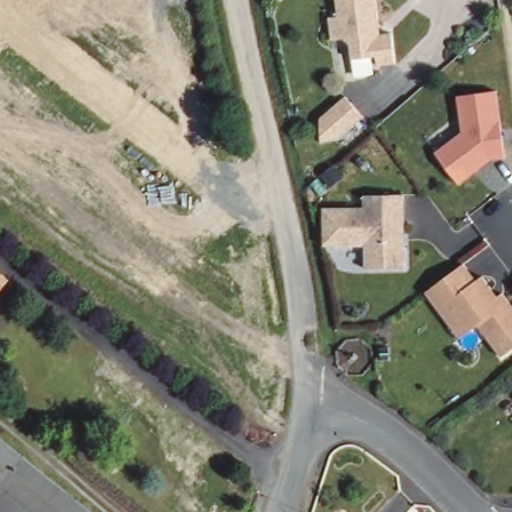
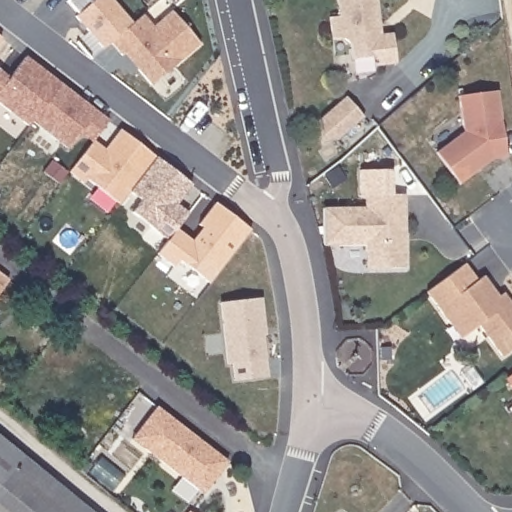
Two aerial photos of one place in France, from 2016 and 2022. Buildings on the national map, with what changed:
new [(74,16),(77,14),(66,0),(110,0),(131,25),(111,43),(103,49),(74,16)]
unchanged [(395,31),(396,60),(353,59),(353,47),(347,39),(333,40),(330,15),(340,15),(338,0),(378,0),(383,30),(395,31)]
new [(122,56),(111,43),(142,16),(153,28),(172,12),(200,45),(151,87),(138,71),(124,55),(122,56)]
new [(0,104),(0,70),(11,77),(25,57),(61,85),(32,122),(28,127),(0,104)]
new [(110,144),(120,130),(156,158),(129,193),(119,205),(86,180),(84,184),(69,172),(91,143),(80,134),(68,150),(32,122),(61,85),(96,112),(109,121),(93,142),(105,151),(110,144)]
unchanged [(499,90),(507,156),(488,160),(463,184),(438,149),(464,130),(461,96),(499,90)]
unchanged [(366,117),(340,140),(323,139),(322,113),(349,93),(366,117)]
new [(188,214),(176,230),(167,241),(131,214),(141,202),(129,193),(156,158),(192,185),(182,198),(176,205),(188,214)]
unchanged [(405,268),(366,269),(369,246),(326,244),(324,203),(366,203),(366,192),(404,194),(405,268)]
new [(176,230),(192,242),(196,237),(202,229),(198,226),(215,204),(251,231),(210,285),(179,261),(174,268),(156,255),(167,241),(176,230)]
unchanged [(512,307),(512,352),(503,360),(480,326),(461,338),(427,292),(468,261),(512,307)]
unchanged [(0,289),(0,270),(9,277),(0,289)]
new [(260,297),(265,335),(262,336),(267,378),(233,380),(230,363),(225,364),(218,303),(260,297)]
new [(156,409),(226,464),(201,496),(131,441),(156,409)]
unchanged [(0,436),(94,512),(0,512),(0,436)]

